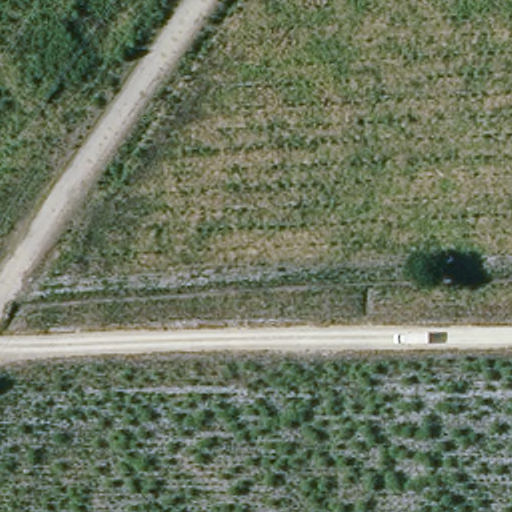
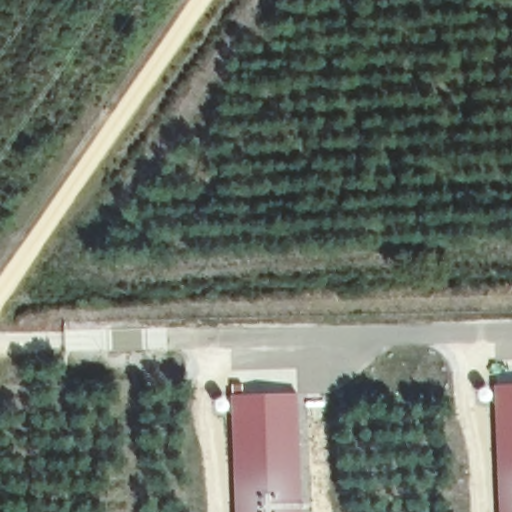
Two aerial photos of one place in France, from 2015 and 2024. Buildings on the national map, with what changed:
new [(237,512),(232,386),(245,386),(245,395),(299,395),(303,512),(237,512)]
new [(502,512),(497,387),(512,386),(512,512),(502,512)]

